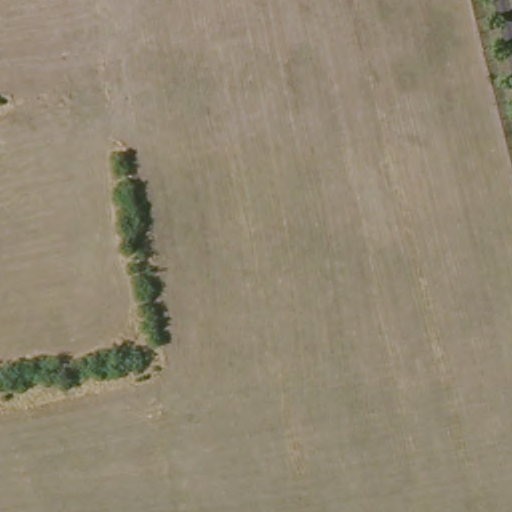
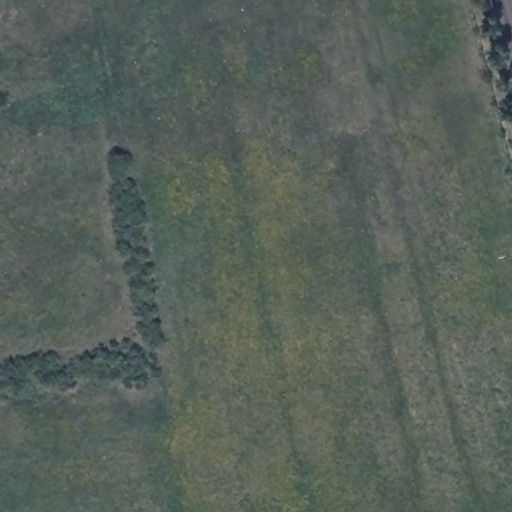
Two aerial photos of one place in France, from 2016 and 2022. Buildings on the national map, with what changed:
[]

